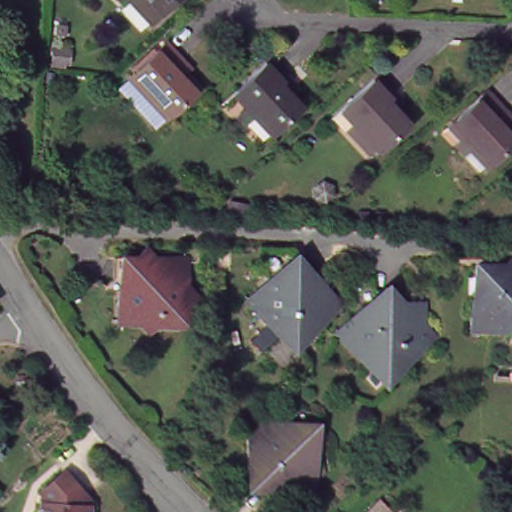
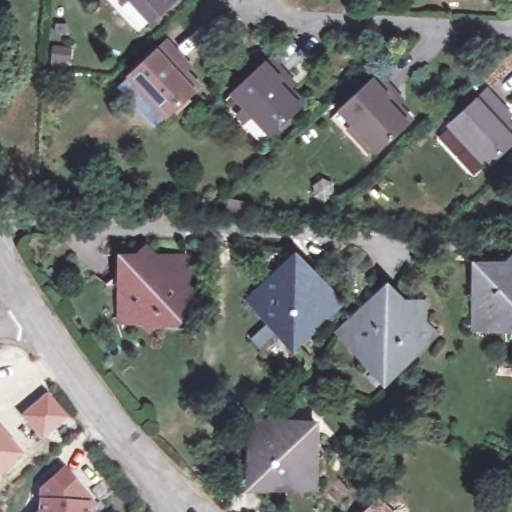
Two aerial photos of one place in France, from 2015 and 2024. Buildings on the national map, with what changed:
unchanged [(126,0),(129,0),(127,2),(126,0)]
unchanged [(136,0),(178,0),(155,21),(136,0)]
unchanged [(128,88),(140,77),(177,42),(194,61),(201,69),(196,73),(209,87),(177,116),(165,127),(128,88)]
unchanged [(54,47),(69,49),(68,60),(52,59),(54,47)]
unchanged [(244,119),(249,113),(237,99),(275,63),(292,81),(299,90),(294,95),(306,109),(272,139),(267,134),(262,139),(244,119)]
unchanged [(348,130),(352,125),(338,109),(377,74),(394,93),(400,100),(395,105),(409,120),(375,151),(370,145),(365,149),(348,130)]
unchanged [(466,145),(452,131),(490,95),(509,114),(512,117),(512,126),(511,127),(512,129),(512,151),(490,170),(485,165),(480,170),(460,151),(466,145)]
unchanged [(146,326),(130,325),(125,319),(127,261),(142,261),(150,254),(157,262),(184,262),(190,270),(189,290),(197,298),(189,307),(188,326),(159,326),(152,332),(146,326)]
unchanged [(284,327),(274,327),(265,317),(265,293),(300,260),(339,300),(337,314),(332,314),(332,318),(322,327),(314,328),(313,336),(297,351),(283,337),(284,327)]
unchanged [(485,318),(485,267),(512,268),(512,333),(495,332),(485,318)]
unchanged [(345,342),(347,330),(352,330),(353,325),(392,290),(412,312),(422,305),(427,310),(425,333),(432,333),(432,345),(425,345),(425,351),(414,362),(405,362),(404,371),(387,386),(372,369),(372,360),(363,360),(352,347),(352,343),(345,342)]
new [(47,391),(70,417),(42,441),(19,415),(47,391)]
unchanged [(255,456),(249,452),(249,438),(265,421),(315,422),(315,442),(308,450),(315,456),(314,470),(296,487),(249,486),(249,465),(255,456)]
new [(23,453),(0,473),(0,426),(23,453)]
unchanged [(47,511),(47,490),(71,470),(90,491),(100,503),(95,508),(94,510),(94,512),(46,512),(47,511)]
unchanged [(382,506),(387,512),(375,512),(382,506)]

